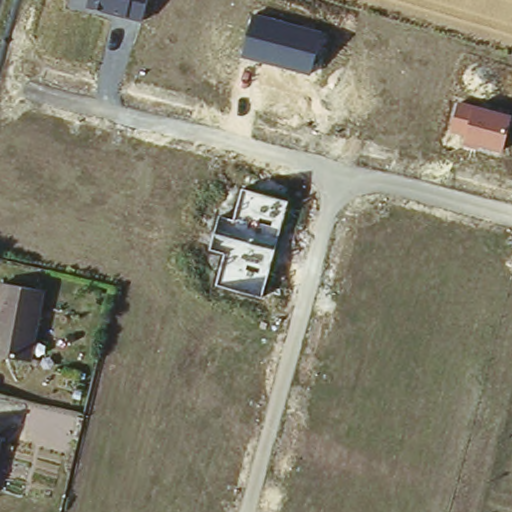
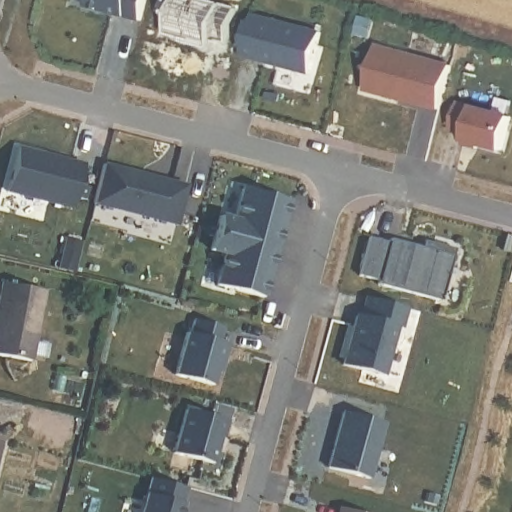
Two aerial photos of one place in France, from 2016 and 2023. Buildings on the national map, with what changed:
unchanged [(87,9),(89,0),(147,0),(142,21),(87,9)]
unchanged [(322,31),(312,76),(241,57),(252,12),(322,31)]
new [(372,39),(447,59),(435,106),(360,86),(372,39)]
unchanged [(512,114),(512,119),(504,154),(474,146),(473,149),(461,146),(464,134),(448,129),(456,100),(512,114)]
new [(85,160),(74,204),(7,189),(20,142),(85,160)]
new [(155,174),(187,183),(177,221),(95,199),(105,161),(145,172),(155,174)]
unchanged [(289,200),(263,298),(216,286),(225,252),(210,249),(220,215),(235,219),(243,188),(289,200)]
new [(384,233),(425,245),(416,242),(417,235),(427,238),(448,244),(434,296),(372,279),(372,275),(353,270),(363,232),(383,237),(384,233)]
unchanged [(16,361),(0,357),(0,284),(1,283),(33,289),(16,361)]
new [(351,316),(356,317),(361,298),(402,309),(396,328),(390,326),(376,378),(337,367),(338,361),(341,352),(351,316)]
new [(210,367),(213,356),(206,382),(168,371),(181,328),(184,328),(188,314),(220,323),(216,337),(222,339),(217,357),(214,368),(210,367)]
new [(217,433),(216,433),(207,461),(169,450),(181,406),(222,418),(217,433)]
new [(381,426),(369,476),(327,465),(340,415),(381,426)]
new [(179,483),(174,499),(175,499),(172,512),(134,512),(144,474),(179,483)]
new [(334,509),(347,512),(333,512),(334,509)]

